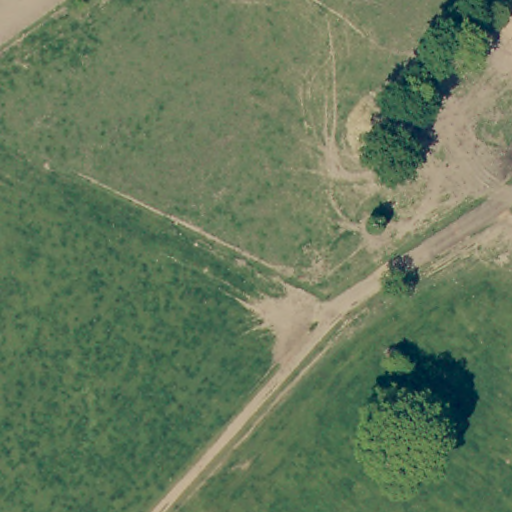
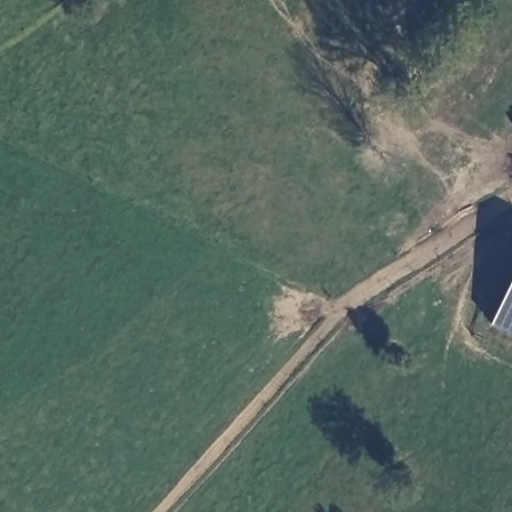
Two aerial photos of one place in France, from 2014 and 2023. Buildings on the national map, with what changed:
new [(488,326),(512,276),(512,337),(488,326)]

